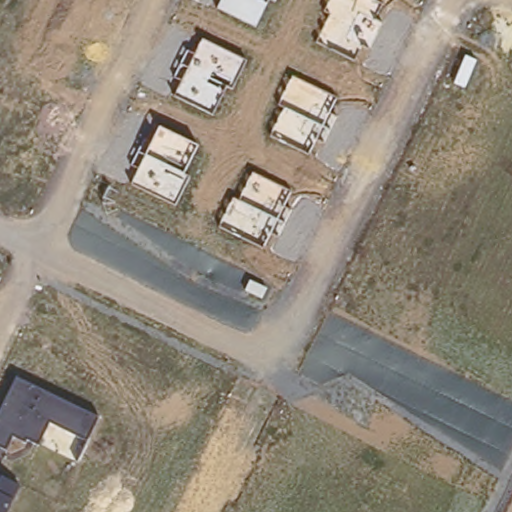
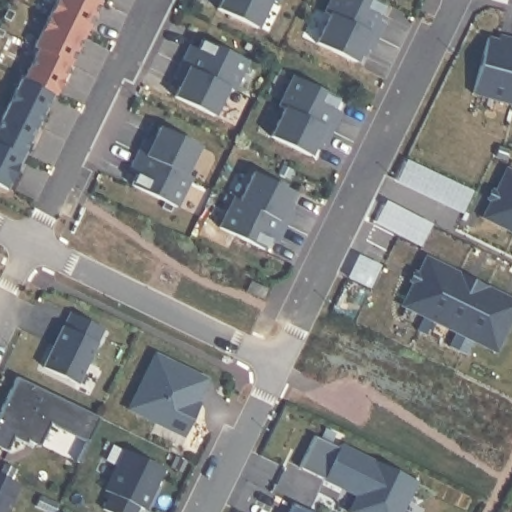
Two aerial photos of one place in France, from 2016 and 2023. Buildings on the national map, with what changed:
new [(98,0),(100,1),(84,33),(48,15),(56,0),(98,0)]
unchanged [(269,0),(255,29),(216,10),(221,0),(269,0)]
unchanged [(271,0),(277,0),(276,2),(271,0)]
unchanged [(324,11),(330,0),(375,0),(384,4),(376,21),(383,25),(371,50),(361,48),(355,61),(317,41),(330,14),(324,11)]
new [(33,46),(48,15),(84,33),(69,64),(38,49),(33,46)]
new [(512,99),(464,86),(478,32),(512,40),(512,99)]
unchanged [(182,81),(175,77),(186,50),(194,55),(201,39),(246,60),(231,90),(223,87),(211,115),(175,95),(182,81)]
new [(38,49),(69,64),(54,96),(22,80),(38,49)]
unchanged [(285,109),(278,105),(292,75),(338,98),(331,115),(337,119),(325,144),(317,140),(309,156),(269,137),(285,109)]
new [(20,80),(51,95),(36,126),(4,111),(20,80)]
new [(36,126),(21,157),(0,147),(0,120),(4,111),(36,126)]
unchanged [(138,169),(130,166),(143,141),(150,145),(159,127),(198,145),(183,175),(189,178),(174,205),(131,184),(138,169)]
new [(5,190),(0,187),(0,147),(21,157),(5,190)]
new [(512,243),(475,225),(504,170),(512,174),(512,243)]
unchanged [(234,196),(239,199),(253,174),(292,192),(285,207),(293,210),(280,237),(271,235),(264,250),(218,226),(234,196)]
new [(512,300),(486,353),(398,308),(426,254),(512,297),(512,300)]
new [(76,384),(42,368),(62,327),(63,327),(70,313),(102,329),(76,384)]
new [(128,410),(155,354),(207,380),(196,402),(199,403),(183,436),(128,410)]
unchanged [(16,378),(99,419),(88,443),(49,425),(39,446),(26,440),(25,443),(11,438),(5,451),(0,448),(0,410),(16,378)]
new [(402,512),(348,512),(357,492),(343,486),(342,489),(297,467),(313,436),(337,448),(339,445),(416,482),(402,512)]
new [(104,490),(124,450),(164,470),(143,510),(137,507),(135,512),(109,512),(102,509),(110,493),(104,490)]
unchanged [(20,485),(8,512),(0,512),(0,475),(20,485)]
new [(310,512),(288,512),(292,503),(310,512)]

